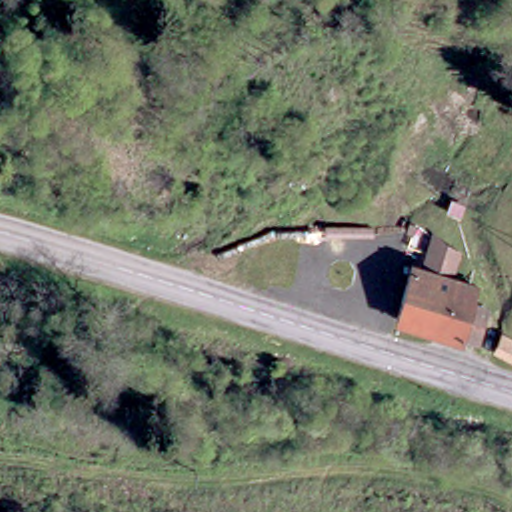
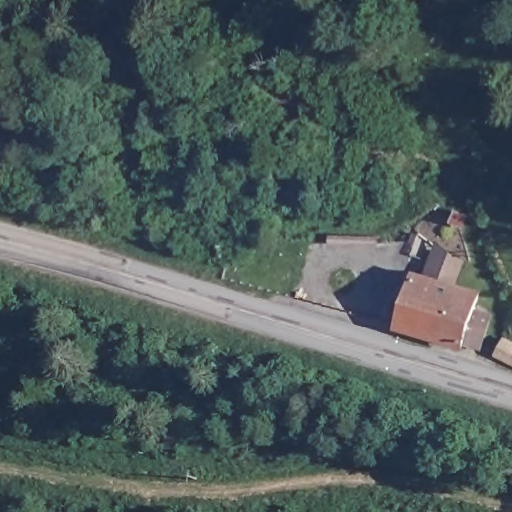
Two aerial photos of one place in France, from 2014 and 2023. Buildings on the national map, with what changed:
unchanged [(472,341),(456,336),(455,340),(390,320),(390,318),(406,267),(426,273),(429,262),(453,269),(450,281),(470,287),(466,304),(482,309),(472,341)]
unchanged [(497,334),(512,340),(512,362),(504,358),(487,350),(487,352),(475,349),(482,320),(492,322),(494,323),(491,335),(487,349),(493,340),(497,334)]

